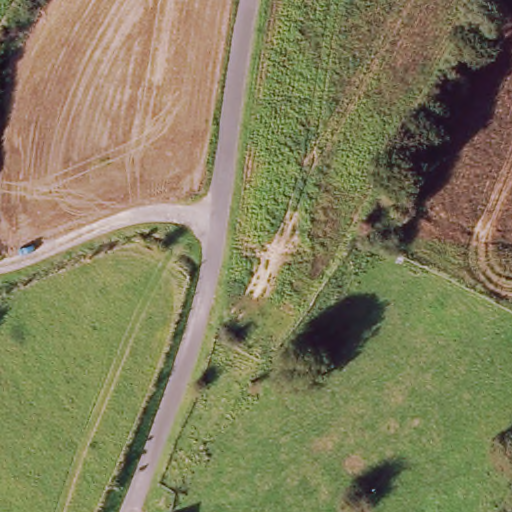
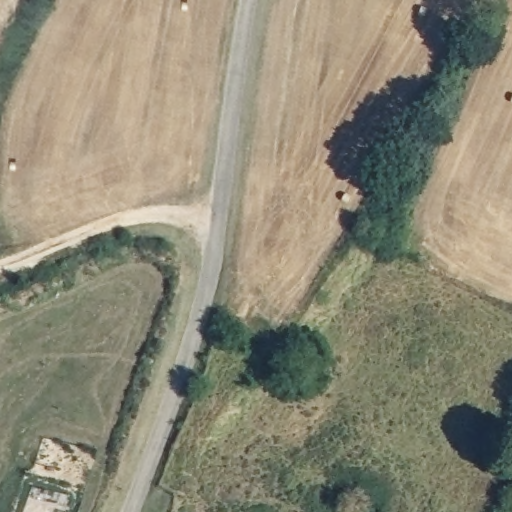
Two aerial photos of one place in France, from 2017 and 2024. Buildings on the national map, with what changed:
[]

